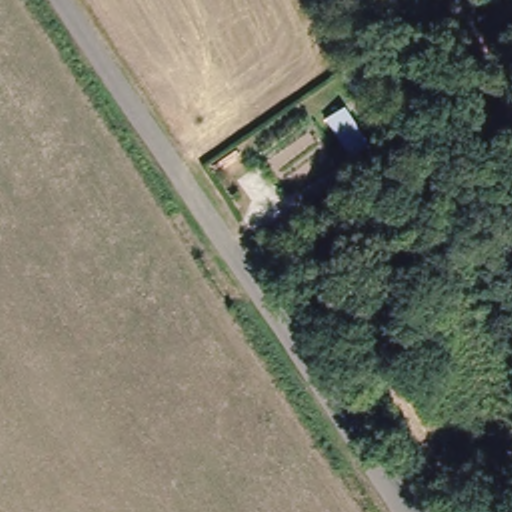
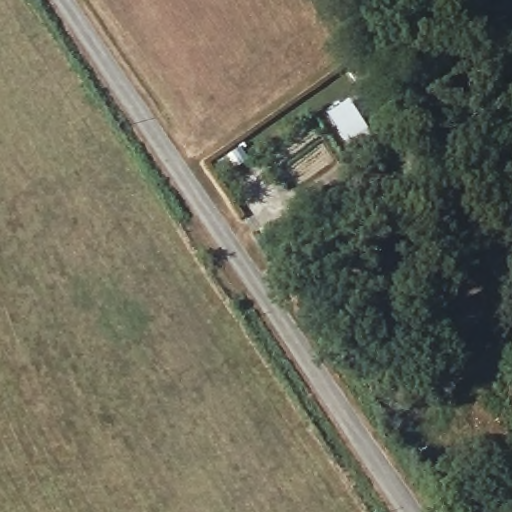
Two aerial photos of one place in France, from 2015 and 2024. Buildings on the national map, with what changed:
unchanged [(371,141),(351,154),(324,119),(346,104),(371,141)]

